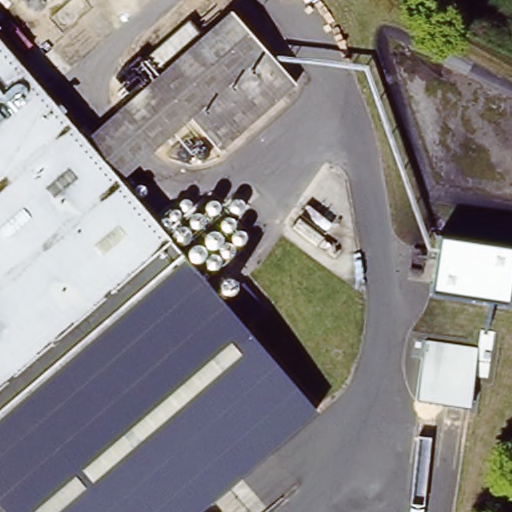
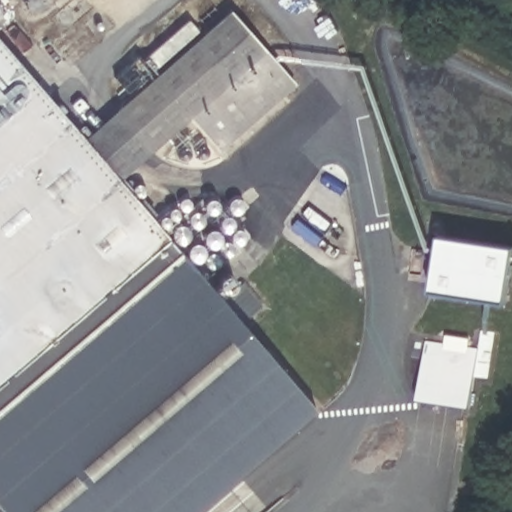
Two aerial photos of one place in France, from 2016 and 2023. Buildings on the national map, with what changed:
unchanged [(30,15),(17,0),(51,0),(30,15)]
unchanged [(154,80),(138,64),(190,20),(204,37),(230,12),(299,86),(220,152),(192,122),(122,184),(156,217),(195,262),(324,412),(204,512),(2,512),(0,510),(0,37),(86,137),(154,80)]
unchanged [(183,195),(196,210),(214,194),(250,233),(217,265),(205,252),(195,262),(156,217),(183,195)]
unchanged [(441,234),(512,245),(512,270),(507,300),(432,288),(441,234)]
unchanged [(427,342),(478,349),(470,405),(417,397),(427,342)]

